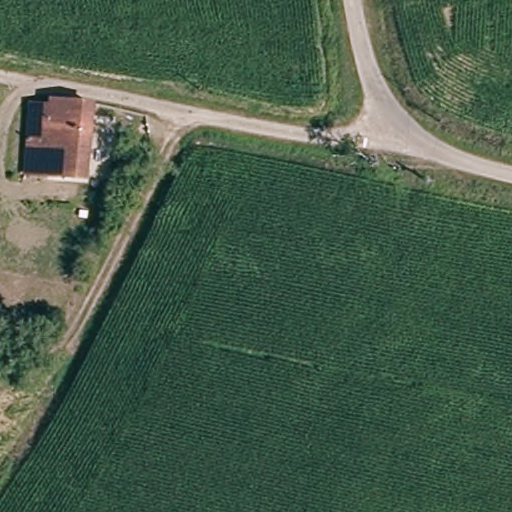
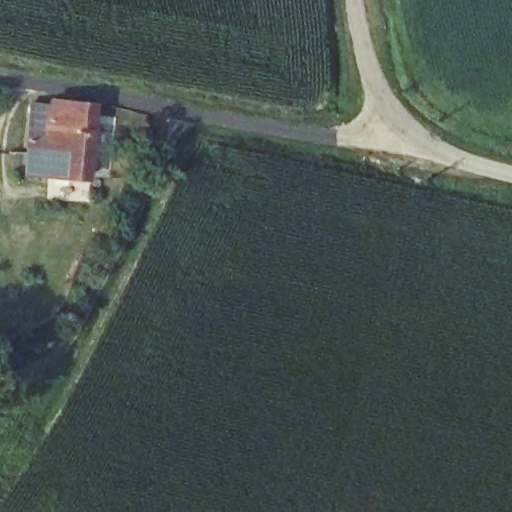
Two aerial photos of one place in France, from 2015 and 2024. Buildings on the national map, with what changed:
unchanged [(82,178),(36,170),(24,168),(37,98),(57,102),(59,97),(96,104),(82,178)]

